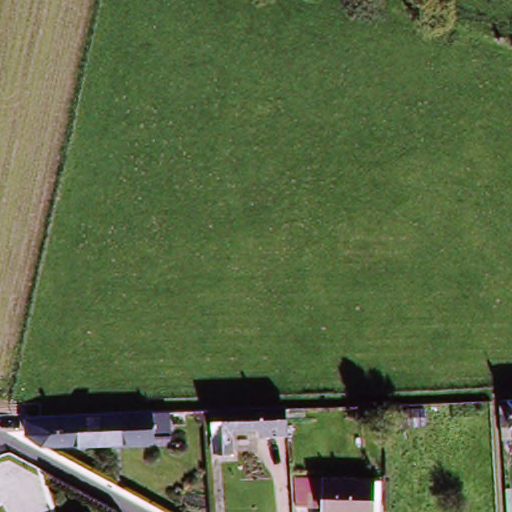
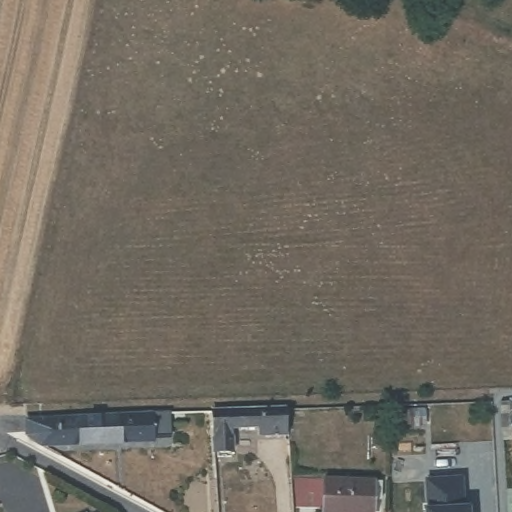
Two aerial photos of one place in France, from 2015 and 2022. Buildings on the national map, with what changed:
unchanged [(275,408),(275,432),(255,431),(255,422),(235,423),(234,455),(218,454),(218,411),(275,408)]
unchanged [(156,415),(156,436),(28,438),(28,431),(14,431),(14,416),(156,415)]
new [(463,475),(465,506),(470,505),(470,512),(423,512),(423,509),(428,508),(425,478),(463,475)]
unchanged [(326,484),(375,482),(374,512),(326,512),(326,484)]

